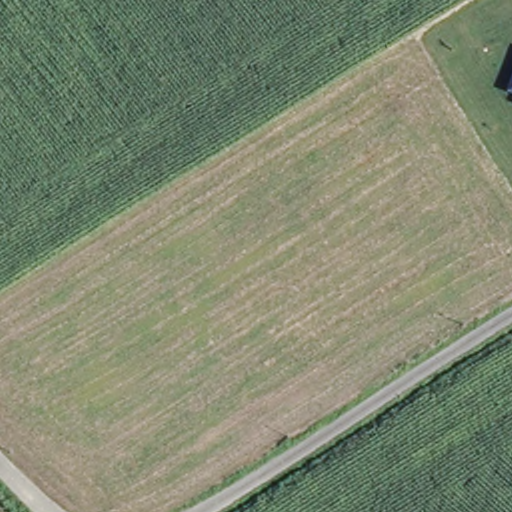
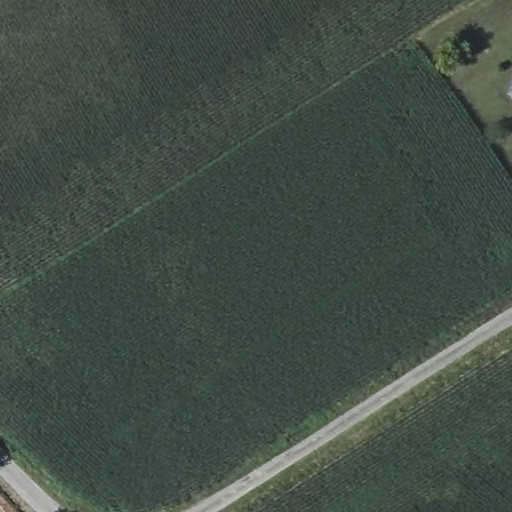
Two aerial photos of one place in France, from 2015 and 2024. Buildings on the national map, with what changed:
unchanged [(512,87),(512,96),(508,95),(512,87)]

